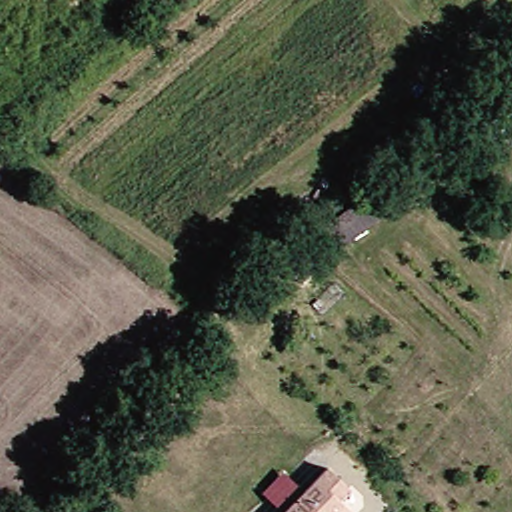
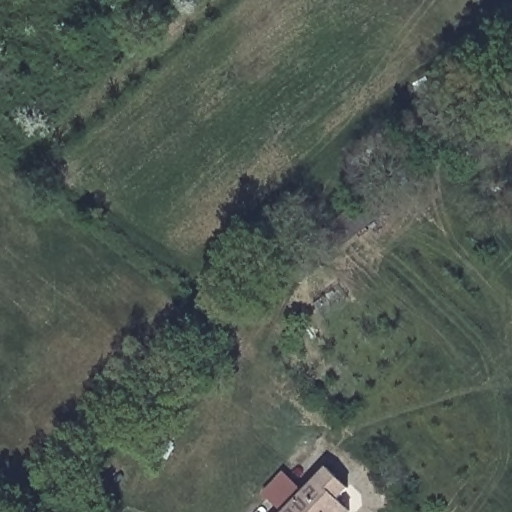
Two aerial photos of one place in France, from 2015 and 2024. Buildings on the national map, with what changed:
unchanged [(336,464),(357,486),(346,496),(359,508),(355,512),(288,512),(336,464)]

